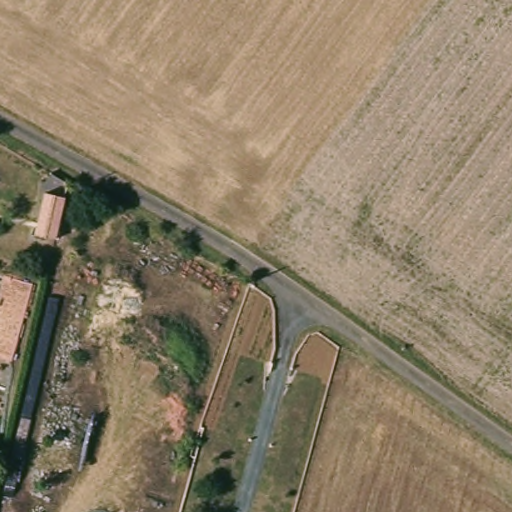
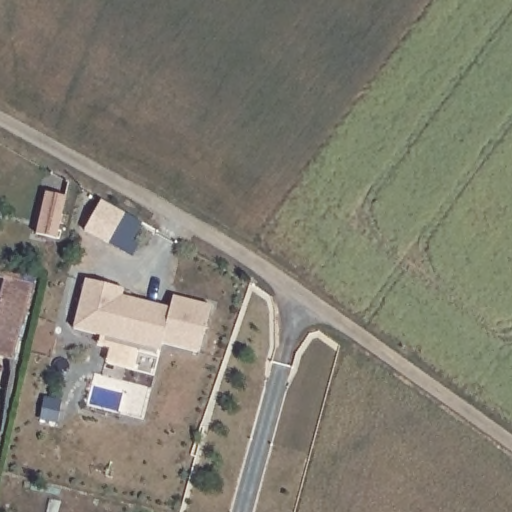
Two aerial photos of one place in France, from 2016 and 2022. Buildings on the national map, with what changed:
unchanged [(68,204),(58,247),(37,241),(48,200),(68,204)]
new [(73,329),(84,279),(124,288),(123,295),(169,307),(172,296),(210,305),(199,352),(160,343),(159,350),(73,329)]
unchanged [(12,367),(0,363),(0,313),(9,283),(36,292),(12,367)]

